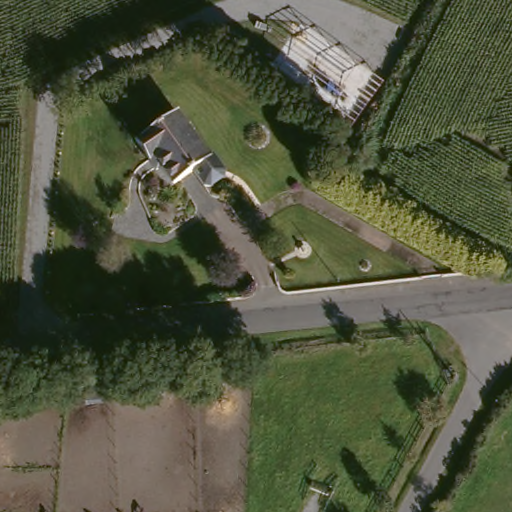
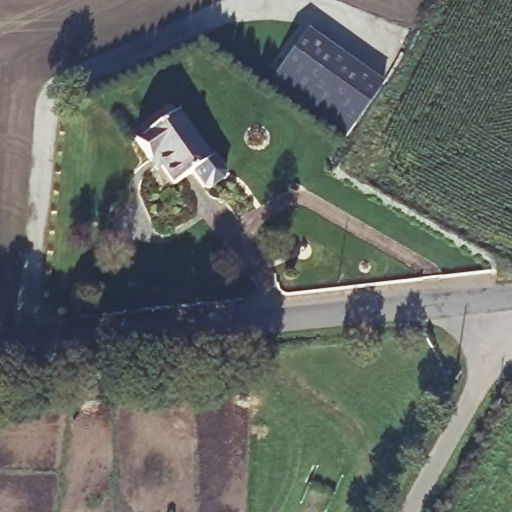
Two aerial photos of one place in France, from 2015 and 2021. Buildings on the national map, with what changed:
new [(315,31),(392,83),(364,126),(286,73),(315,31)]
unchanged [(152,160),(148,162),(135,144),(174,115),(205,159),(209,156),(221,173),(220,180),(207,189),(201,188),(190,172),(170,186),(152,160)]
unchanged [(0,322),(0,293),(60,287),(62,317),(0,322)]

